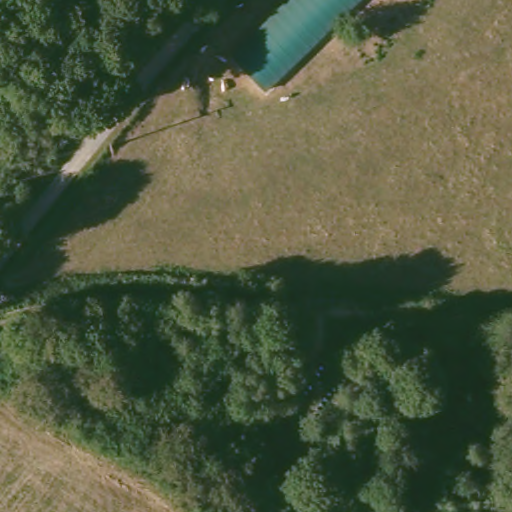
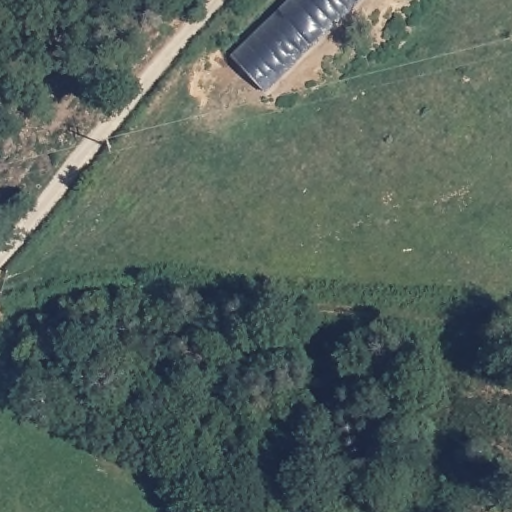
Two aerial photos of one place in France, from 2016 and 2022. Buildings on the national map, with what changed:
unchanged [(291,0),(358,0),(266,89),(233,55),(291,0)]

